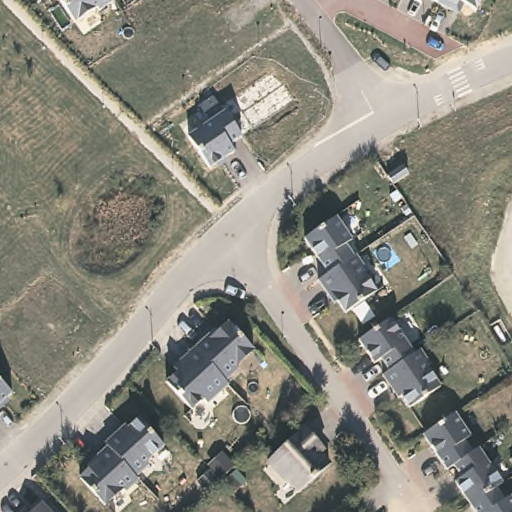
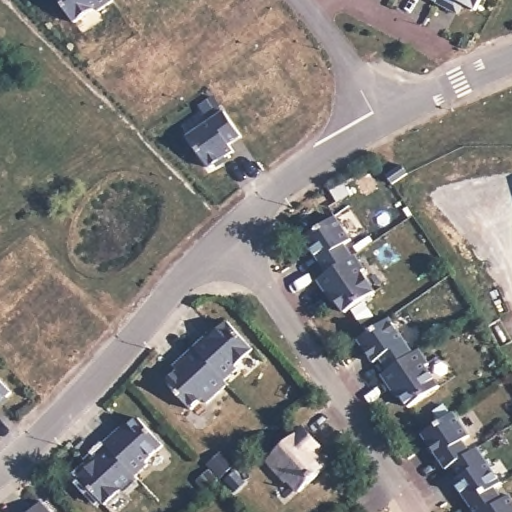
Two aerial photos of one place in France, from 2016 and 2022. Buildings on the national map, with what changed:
unchanged [(102,11),(97,7),(76,23),(59,0),(113,0),(102,11)]
unchanged [(476,10),(462,5),(457,14),(431,0),(481,0),(476,10)]
unchanged [(226,110),(242,135),(232,144),(235,150),(209,168),(187,137),(226,110)]
unchanged [(402,164),(408,173),(393,183),(389,177),(387,175),(402,164)]
unchanged [(336,215),(352,239),(345,243),(353,255),(328,272),(305,237),(336,215)]
unchanged [(328,272),(353,255),(356,254),(366,268),(362,270),(376,291),(346,311),(337,300),(334,302),(318,279),(328,272)]
unchanged [(391,317),(403,336),(415,352),(413,353),(401,361),(390,369),(382,357),(375,362),(372,357),(360,338),(391,317)]
unchanged [(215,326),(217,330),(228,320),(254,347),(236,363),(238,366),(225,378),(195,345),(215,326)]
unchanged [(225,378),(228,381),(207,400),(203,396),(191,407),(166,380),(177,369),(174,365),(195,345),(225,378)]
unchanged [(390,369),(401,361),(413,353),(415,352),(420,348),(430,363),(427,365),(441,385),(410,406),(402,395),(398,396),(383,373),(390,369)]
unchanged [(12,392),(0,405),(0,379),(12,392)]
unchanged [(453,411),(468,435),(462,439),(469,449),(466,451),(463,453),(452,461),(450,462),(443,466),(421,433),(453,411)]
unchanged [(126,422),(128,425),(139,415),(164,442),(146,459),(148,462),(136,473),(136,474),(127,464),(107,443),(105,440),(126,422)]
unchanged [(304,425),(323,445),(318,450),(329,461),(300,488),(289,477),(287,478),(267,457),(304,425)]
unchanged [(87,462),(107,443),(127,464),(136,474),(136,473),(138,476),(138,477),(125,489),(122,486),(105,502),(80,475),(90,465),(87,462)]
unchanged [(463,453),(466,451),(469,449),(475,445),(500,481),(482,493),(468,503),(452,478),(458,474),(450,462),(452,461),(463,453)]
unchanged [(500,481),(507,476),(512,484),(512,490),(508,492),(512,499),(512,512),(475,512),(468,503),(482,493),(500,481)]
unchanged [(49,512),(35,512),(42,505),(49,512)]

